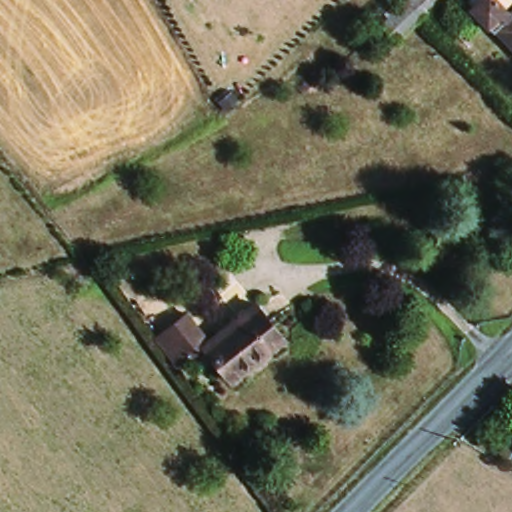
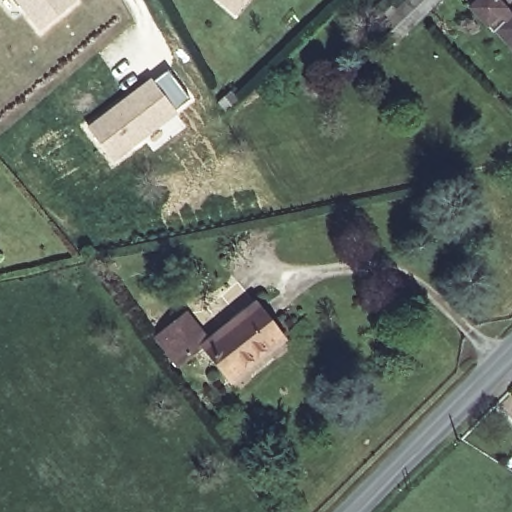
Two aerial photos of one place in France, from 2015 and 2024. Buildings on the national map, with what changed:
new [(17,0),(74,0),(41,30),(17,0)]
new [(220,0),(250,0),(237,15),(220,0)]
unchanged [(403,14),(408,9),(400,3),(403,0),(443,0),(419,27),(410,37),(400,48),(385,34),(394,24),(403,14)]
unchanged [(495,37),(471,18),(487,0),(497,0),(512,13),(512,39),(503,32),(495,37)]
new [(179,114),(113,162),(86,127),(151,79),(179,114)]
unchanged [(251,308),(274,335),(226,377),(203,352),(210,345),(251,308)]
unchanged [(210,345),(203,352),(180,372),(158,346),(188,320),(210,345)]

